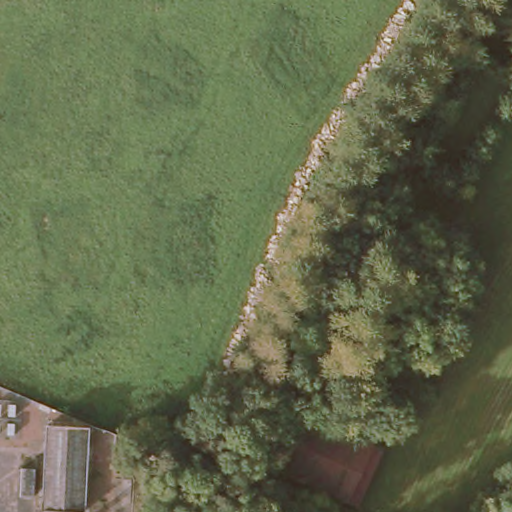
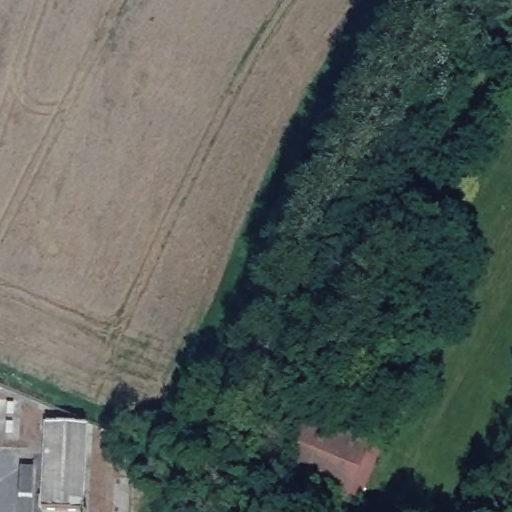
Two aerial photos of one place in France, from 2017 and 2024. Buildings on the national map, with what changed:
unchanged [(262,477),(291,411),(325,424),(332,411),(367,426),(358,442),(384,455),(361,512),(353,512),(262,477)]
unchanged [(82,512),(45,512),(45,504),(20,504),(21,469),(50,470),(50,426),(90,427),(82,512)]

